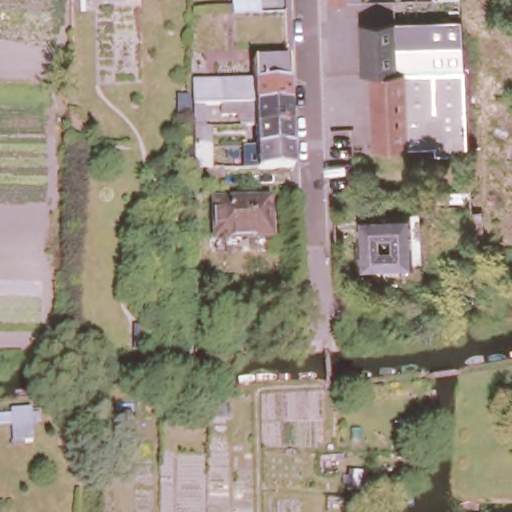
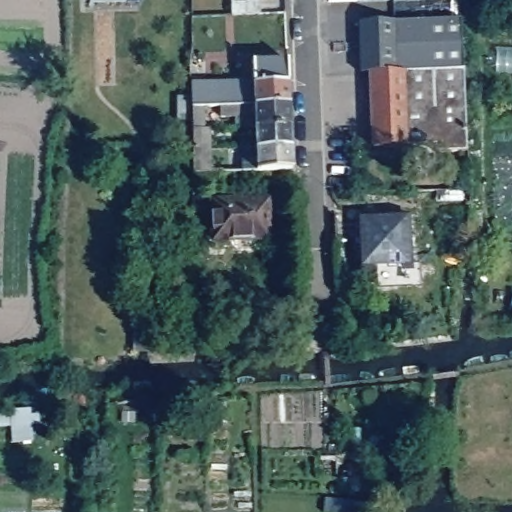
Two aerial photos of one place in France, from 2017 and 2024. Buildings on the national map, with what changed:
unchanged [(232,0),(258,0),(259,15),(232,15),(232,0)]
unchanged [(358,0),(358,5),(333,6),(333,0),(358,0)]
unchanged [(435,0),(454,0),(454,1),(436,2),(435,0)]
unchanged [(370,71),(359,70),(358,23),(459,20),(463,68),(370,71)]
unchanged [(193,169),(193,124),(193,102),(193,80),(252,77),(252,68),(251,56),(288,55),(288,67),(288,76),(289,99),(290,120),(292,164),(257,165),(254,121),(253,100),(204,102),(204,124),(209,124),(211,152),(222,152),(223,167),(223,184),(196,185),(194,168),(193,169)]
unchanged [(436,152),(435,144),(373,146),(370,71),(463,68),(468,150),(436,152)]
unchanged [(268,196),(269,235),(215,235),(214,197),(268,196)]
unchanged [(408,215),(411,265),(421,263),(422,280),(368,283),(366,268),(361,268),(359,217),(408,215)]
unchanged [(85,429),(84,391),(135,391),(136,425),(85,429)]

